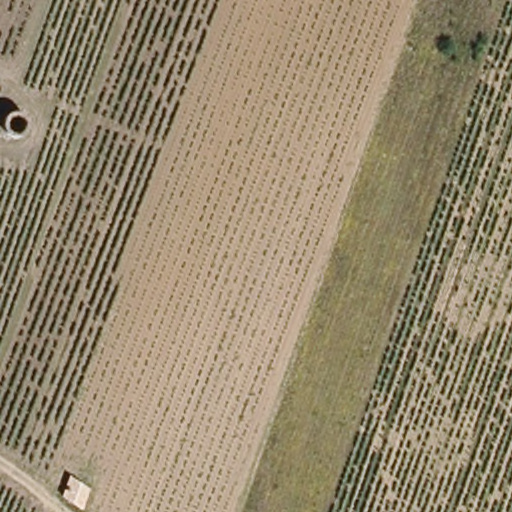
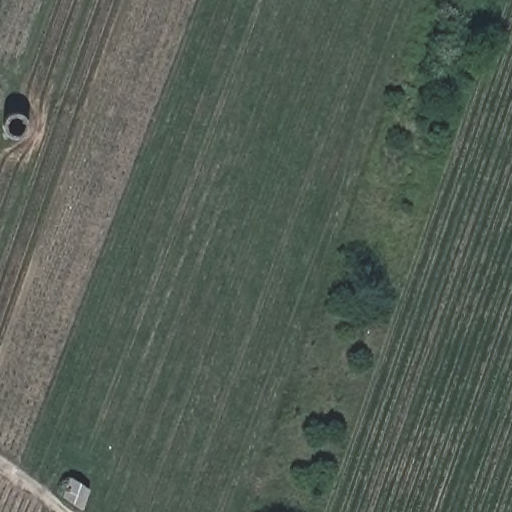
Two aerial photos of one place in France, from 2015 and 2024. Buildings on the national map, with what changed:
unchanged [(68,480),(81,486),(87,488),(78,512),(60,498),(68,480)]

